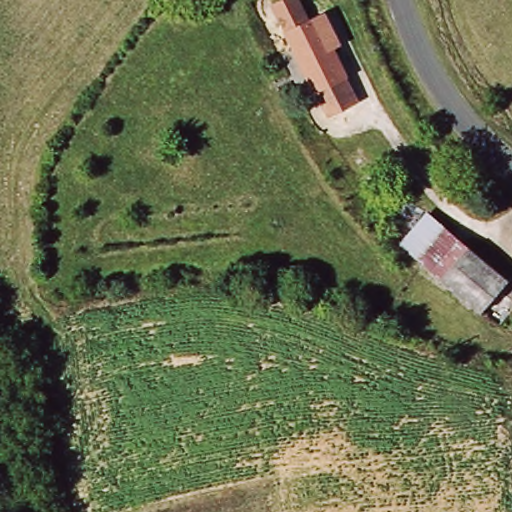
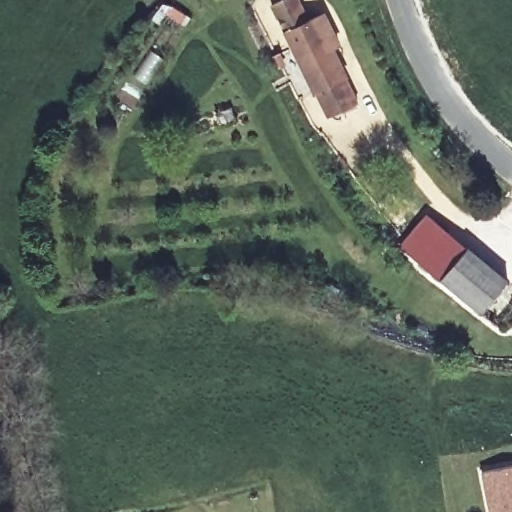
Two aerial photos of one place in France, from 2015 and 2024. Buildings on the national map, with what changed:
unchanged [(353,81),(320,97),(280,12),(304,0),(316,26),(325,21),(353,81)]
unchanged [(485,318),(407,248),(433,216),(512,280),(485,318)]
new [(482,472),(512,465),(512,512),(490,512),(482,472)]

